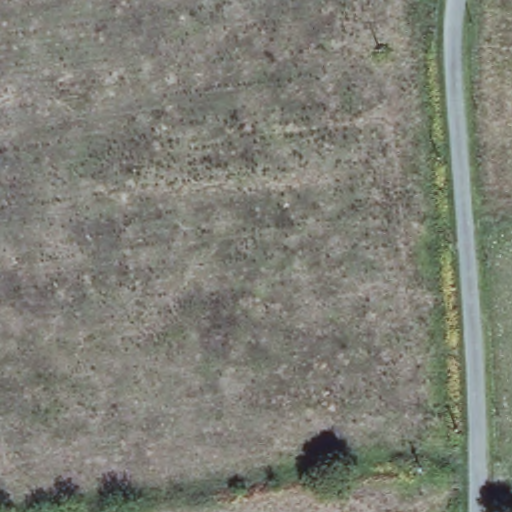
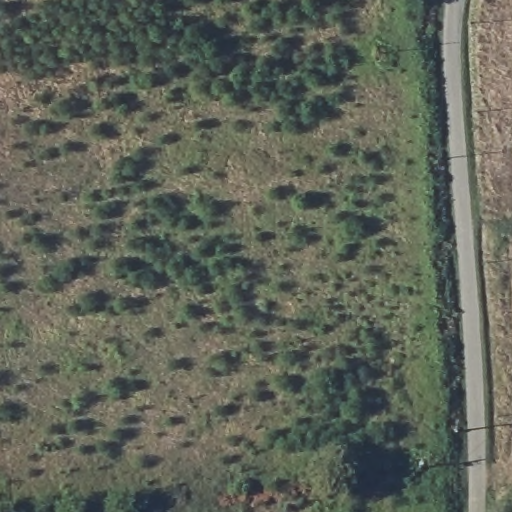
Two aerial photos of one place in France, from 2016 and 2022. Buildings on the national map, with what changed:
[]

